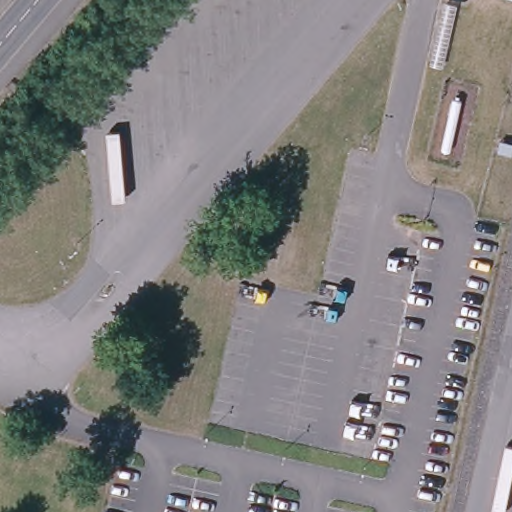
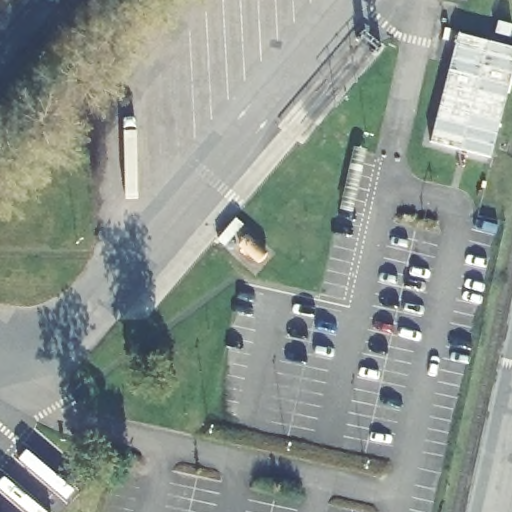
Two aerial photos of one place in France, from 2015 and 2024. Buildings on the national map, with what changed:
unchanged [(500,2),(500,0),(512,0),(512,5),(500,2)]
new [(491,158),(429,144),(457,33),(512,47),(512,69),(491,158)]

